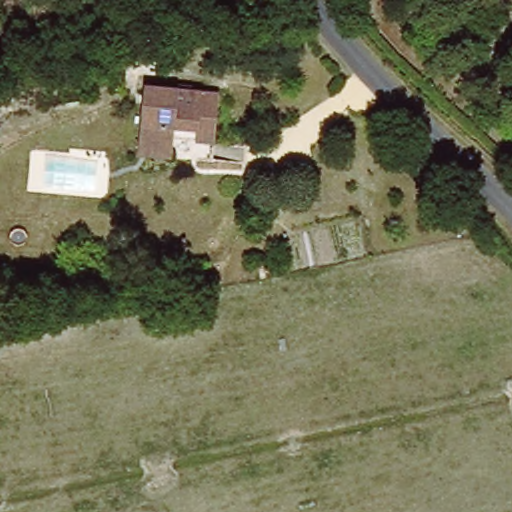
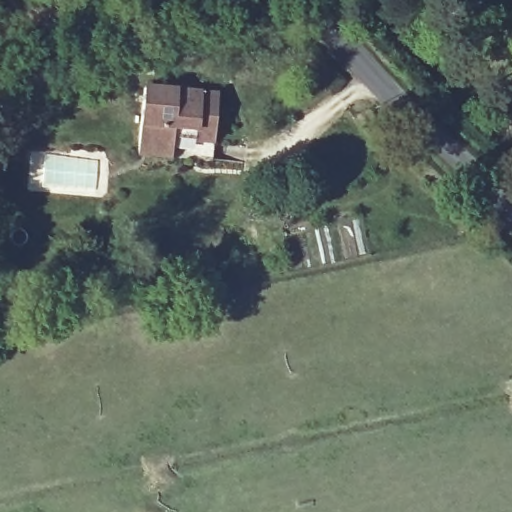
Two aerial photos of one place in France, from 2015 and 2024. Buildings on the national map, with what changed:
unchanged [(213,161),(138,156),(144,90),(219,96),(213,161)]

